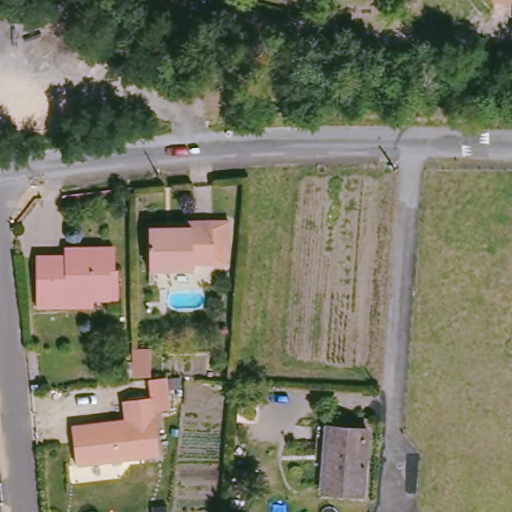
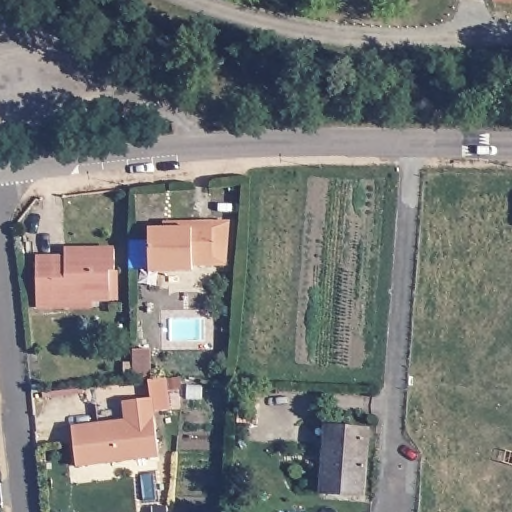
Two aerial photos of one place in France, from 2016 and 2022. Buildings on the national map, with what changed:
unchanged [(193,262),(193,268),(149,268),(148,225),(193,224),(192,217),(233,216),(233,261),(193,262)]
unchanged [(94,293),(94,302),(56,302),(56,306),(38,306),(36,256),(55,256),(56,265),(67,264),(66,250),(116,250),(116,272),(112,272),(111,293),(94,293)]
unchanged [(125,422),(123,403),(151,400),(158,458),(77,468),(74,445),(72,430),(85,428),(125,422)]
unchanged [(326,495),(328,429),(368,430),(364,497),(326,495)]

